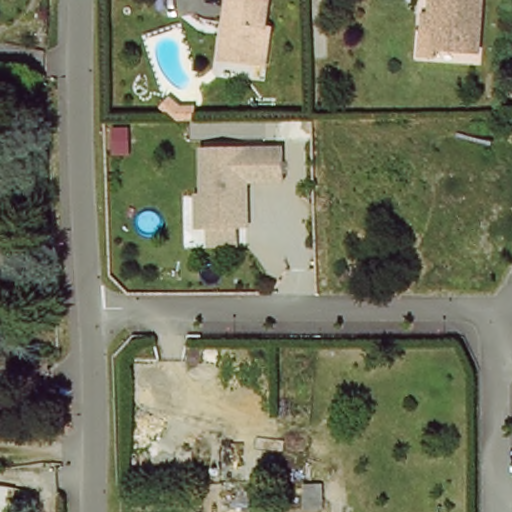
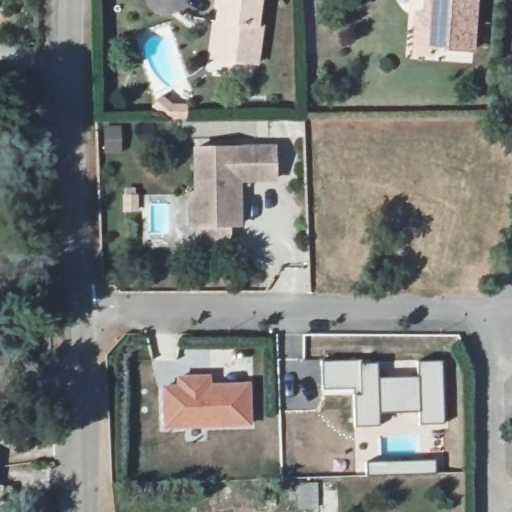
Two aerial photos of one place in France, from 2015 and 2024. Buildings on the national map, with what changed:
unchanged [(221,25),(224,0),(264,0),(261,29),(266,30),(261,68),(221,63),(226,26),(221,25)]
unchanged [(429,19),(430,0),(481,0),(477,54),(436,52),(435,59),(417,58),(420,18),(429,19)]
unchanged [(171,123),(156,110),(165,101),(176,110),(191,110),(192,123),(171,123)]
unchanged [(275,147),(275,179),(239,179),(240,224),(190,225),(190,194),(196,194),(196,148),(275,147)]
new [(378,364),(379,379),(420,379),(419,362),(442,362),(446,424),(420,426),(421,412),(380,411),(379,427),(355,428),(354,389),(321,389),(321,363),(378,364)]
new [(178,386),(176,377),(213,375),(213,384),(252,384),(254,429),(163,432),(161,388),(178,386)]

